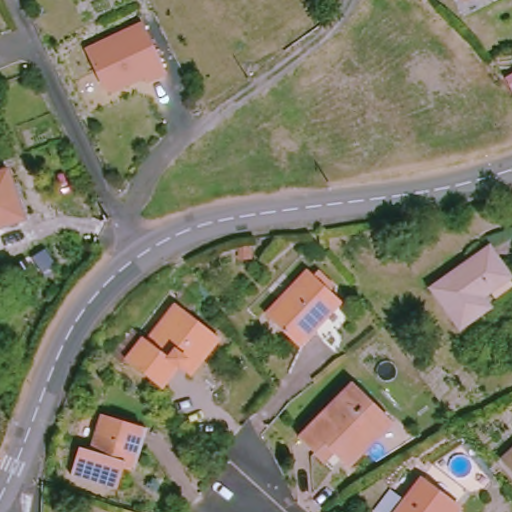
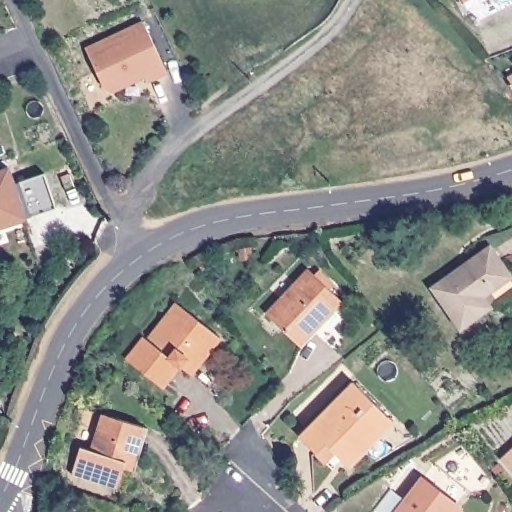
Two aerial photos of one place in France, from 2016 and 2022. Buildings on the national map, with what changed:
unchanged [(462,0),(468,0),(463,2),(462,0)]
unchanged [(105,39),(143,21),(166,72),(146,81),(142,71),(129,77),(126,84),(112,90),(103,87),(85,47),(105,39)]
unchanged [(5,169),(23,218),(0,226),(0,171),(5,169)]
unchanged [(503,271),(476,293),(485,304),(457,327),(427,291),(484,246),(503,271)]
unchanged [(337,300),(291,344),(262,315),(307,270),(337,300)]
unchanged [(154,340),(186,307),(204,324),(171,357),(180,366),(160,387),(130,357),(150,336),(154,340)]
unchanged [(385,418),(360,444),(365,449),(346,467),(327,447),(317,458),(298,439),(350,385),(385,418)]
unchanged [(89,451),(99,417),(140,430),(120,491),(67,474),(75,447),(89,451)]
unchanged [(512,444),(512,477),(496,458),(512,444)]
unchanged [(453,512),(386,512),(410,476),(445,499),(456,507),(453,512)]

